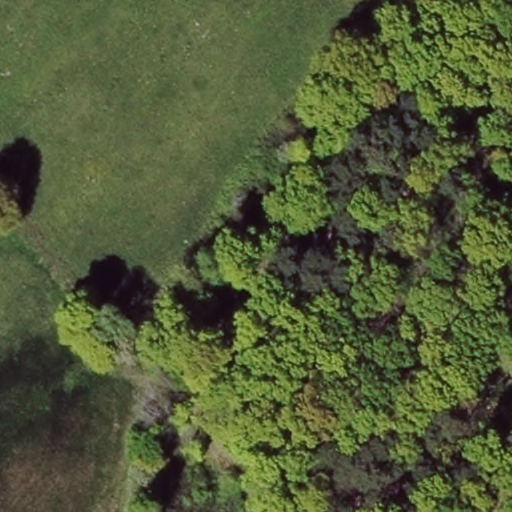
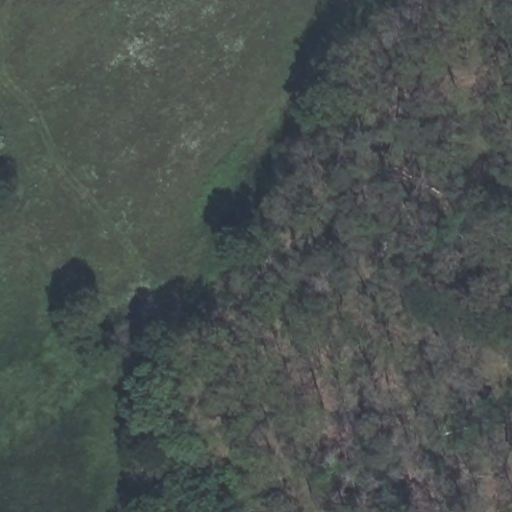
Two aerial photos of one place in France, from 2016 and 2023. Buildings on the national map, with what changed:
[]

